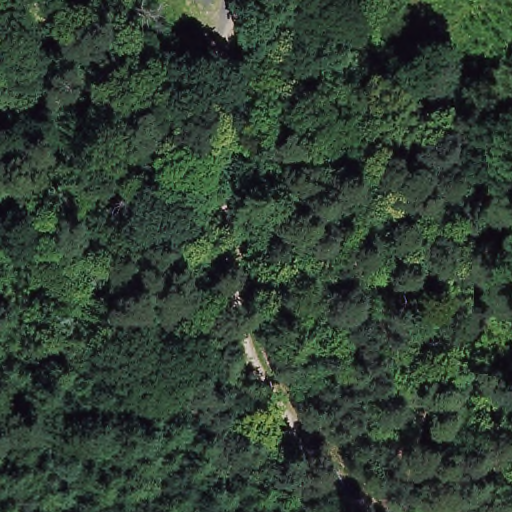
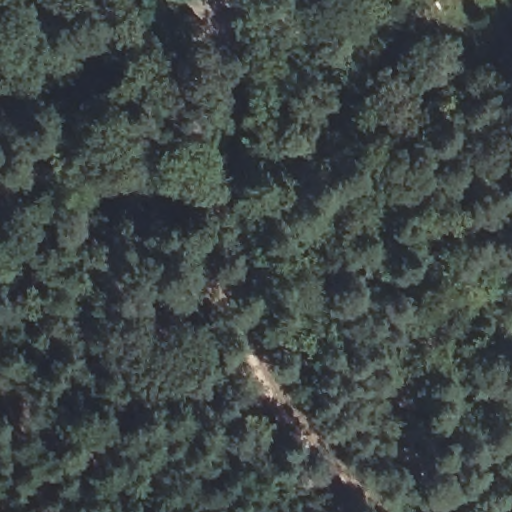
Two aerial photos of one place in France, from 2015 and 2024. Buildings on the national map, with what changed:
unchanged [(365,35),(390,19),(390,20),(404,12),(412,23),(398,31),(400,34),(375,50),(365,35)]

